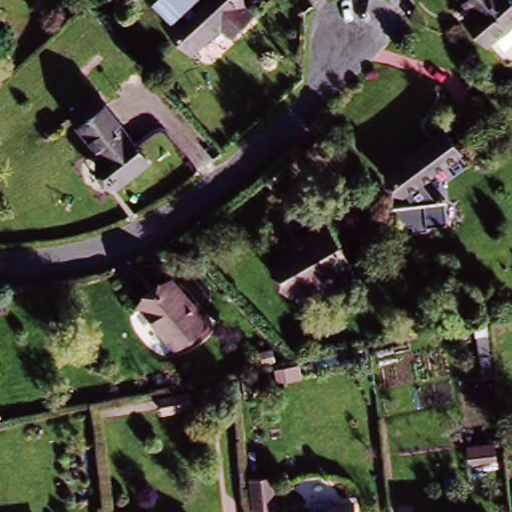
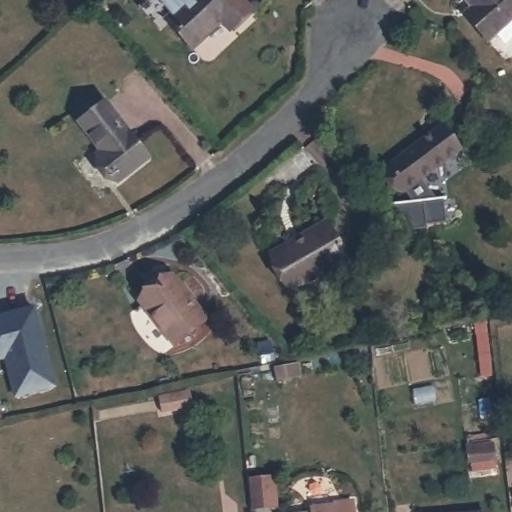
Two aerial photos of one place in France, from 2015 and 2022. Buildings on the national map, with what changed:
unchanged [(225,24),(194,52),(170,25),(198,0),(238,0),(252,15),(235,32),(225,24)]
unchanged [(469,15),(472,11),(462,0),(512,0),(512,22),(494,40),(487,46),(463,21),(469,15)]
unchanged [(119,181),(100,161),(107,154),(79,123),(102,102),(151,154),(119,181)]
unchanged [(401,191),(384,166),(442,126),(459,151),(401,191)]
unchanged [(293,293),(270,257),(324,223),(347,257),(293,293)]
unchanged [(200,323),(175,345),(134,303),(162,276),(185,299),(204,318),(200,323)]
new [(7,357),(0,358),(0,319),(35,310),(54,386),(17,396),(7,357)]
demolished [(0,424),(0,416),(3,423),(0,424)]
unchanged [(246,476),(279,478),(280,507),(251,510),(246,476)]
unchanged [(352,512),(314,512),(331,511),(352,508),(352,512)]

